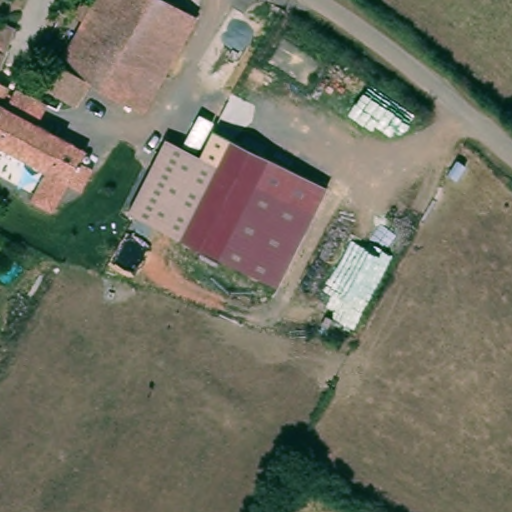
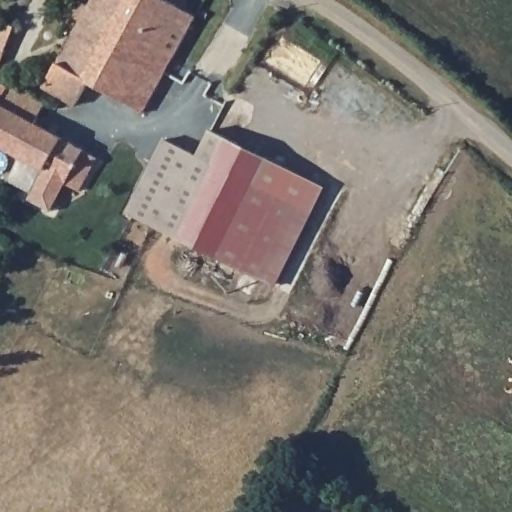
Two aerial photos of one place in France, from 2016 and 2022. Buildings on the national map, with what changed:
unchanged [(4,0),(23,0),(0,52),(0,9),(4,0)]
unchanged [(83,21),(67,12),(74,0),(79,0),(90,6),(94,0),(169,0),(172,2),(141,57),(111,41),(109,44),(79,28),(83,21)]
unchanged [(62,98),(45,90),(59,65),(79,28),(109,44),(111,41),(141,57),(172,2),(197,15),(145,113),(89,82),(76,105),(62,98)]
unchanged [(2,84),(0,88),(0,82),(2,84)]
unchanged [(4,94),(0,102),(0,91),(4,94)]
unchanged [(4,111),(76,150),(83,138),(108,151),(95,177),(83,172),(73,190),(37,173),(39,167),(0,147),(0,109),(4,111)]
unchanged [(191,150),(153,223),(127,210),(163,136),(191,150)]
unchanged [(271,189),(234,264),(153,223),(191,150),(271,189)]
unchanged [(271,189),(317,213),(281,288),(234,264),(271,189)]

